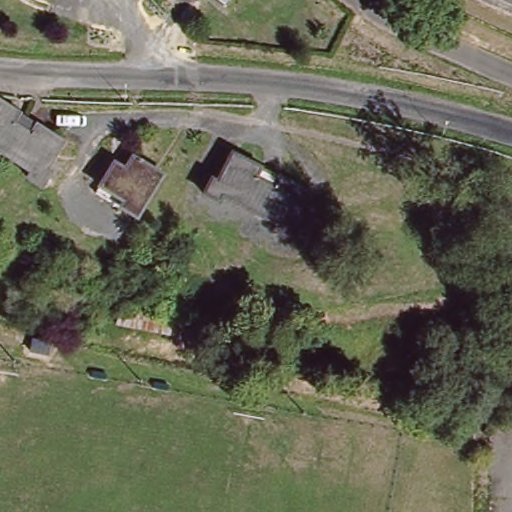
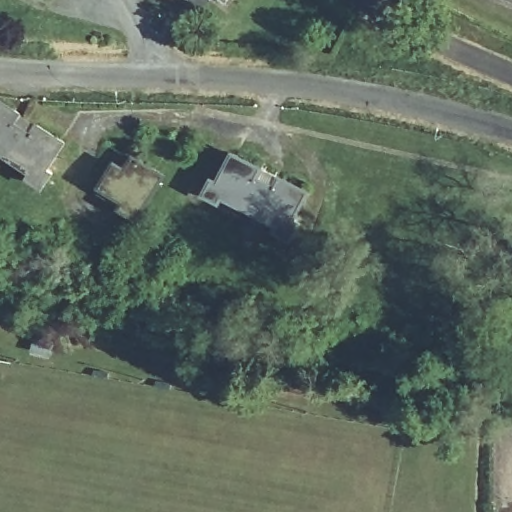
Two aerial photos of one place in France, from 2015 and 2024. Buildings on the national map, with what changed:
unchanged [(22,112),(17,120),(34,131),(40,123),(65,139),(47,167),(53,171),(43,185),(25,173),(30,166),(0,148),(0,98),(22,112)]
unchanged [(213,174),(219,177),(233,150),(260,164),(255,173),(275,183),(280,175),(307,189),(293,215),(298,218),(290,234),(270,224),(274,217),(225,191),(221,198),(205,190),(213,174)]
unchanged [(136,220),(119,209),(123,202),(101,187),(115,165),(126,172),(135,158),(165,177),(136,220)]
unchanged [(123,296),(185,307),(178,337),(116,324),(123,296)]

